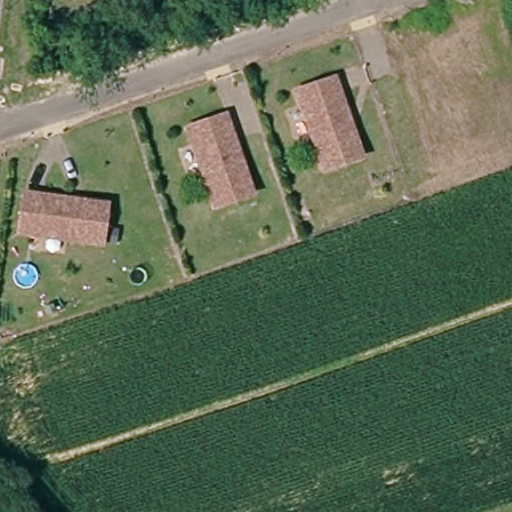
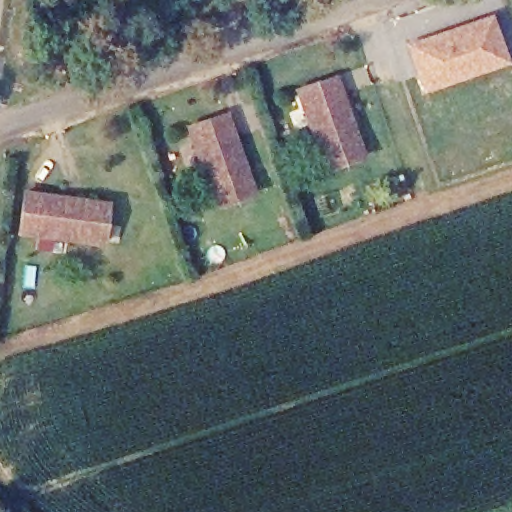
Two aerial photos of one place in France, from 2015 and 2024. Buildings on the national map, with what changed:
new [(405,46),(493,13),(510,66),(423,93),(405,46)]
unchanged [(361,156),(325,170),(299,94),(336,81),(361,156)]
unchanged [(253,195),(215,208),(190,131),(227,119),(253,195)]
unchanged [(100,244),(18,235),(22,197),(104,206),(100,244)]

